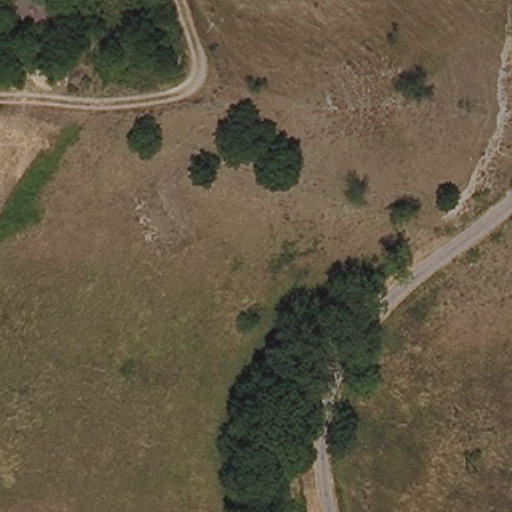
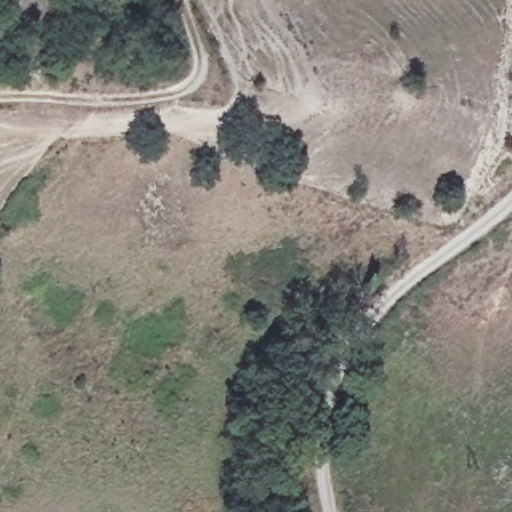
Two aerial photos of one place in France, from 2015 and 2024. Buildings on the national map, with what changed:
[]

